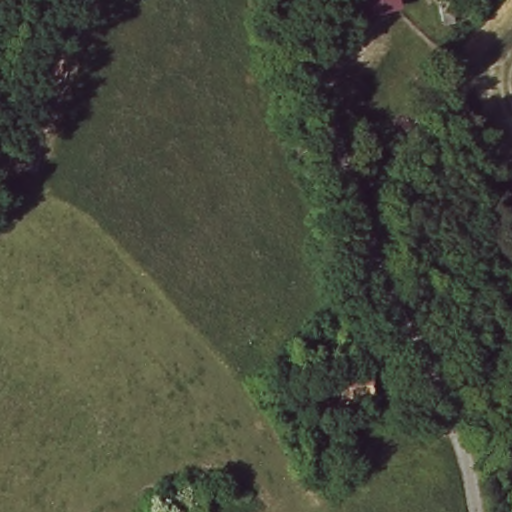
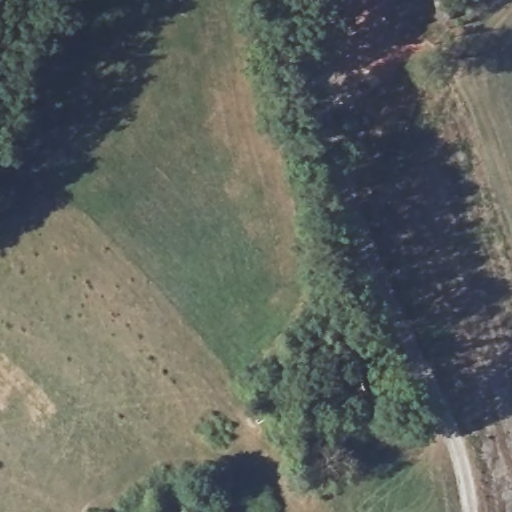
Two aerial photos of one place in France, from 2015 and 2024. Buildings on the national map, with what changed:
unchanged [(385,1),(349,9),(347,0),(385,0),(385,1)]

